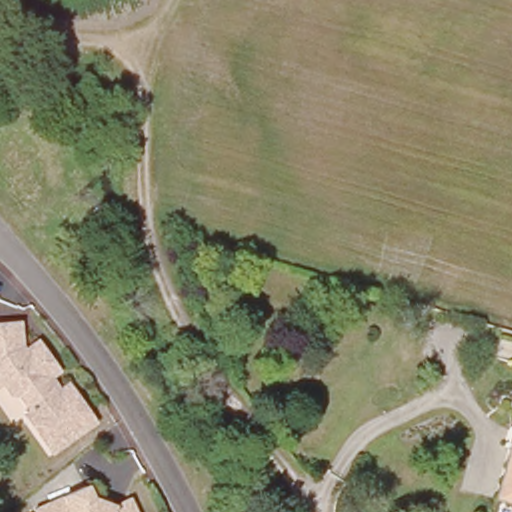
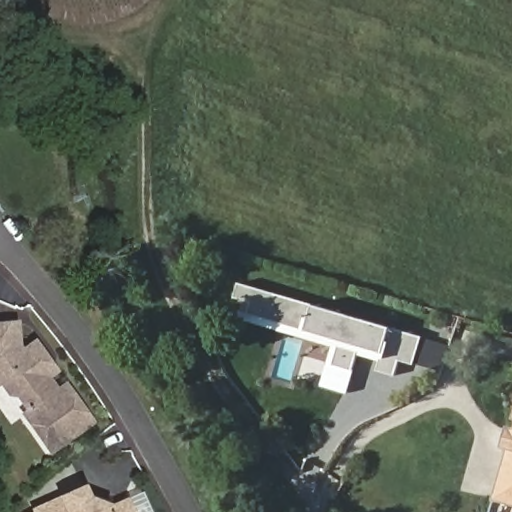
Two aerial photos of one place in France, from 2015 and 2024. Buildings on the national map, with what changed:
new [(314,304),(391,327),(422,337),(414,364),(399,360),(394,375),(378,371),(380,361),(360,356),(348,395),(320,387),(332,346),(231,317),(239,282),(314,304)]
unchanged [(64,390),(72,384),(98,419),(59,449),(32,412),(38,409),(28,394),(17,392),(9,381),(0,387),(0,322),(1,321),(23,321),(24,342),(29,349),(40,342),(50,355),(58,365),(54,368),(50,371),(64,390)]
unchanged [(509,426),(512,426),(512,449),(510,448),(503,446),(509,426)]
unchanged [(512,508),(509,507),(493,503),(510,448),(512,449),(512,508)]
unchanged [(95,488),(100,501),(106,503),(107,499),(117,502),(116,506),(119,507),(137,498),(144,512),(44,512),(43,511),(95,488)]

